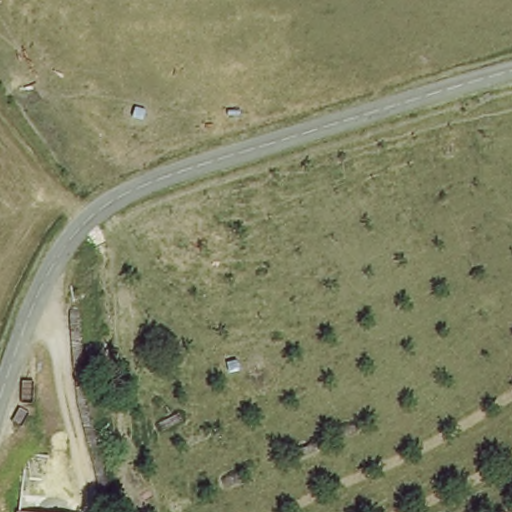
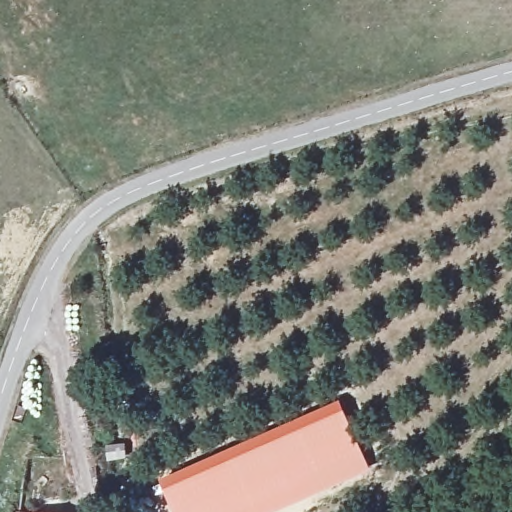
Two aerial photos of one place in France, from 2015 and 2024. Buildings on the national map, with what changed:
new [(341,400),(373,471),(280,512),(174,512),(161,481),(341,400)]

